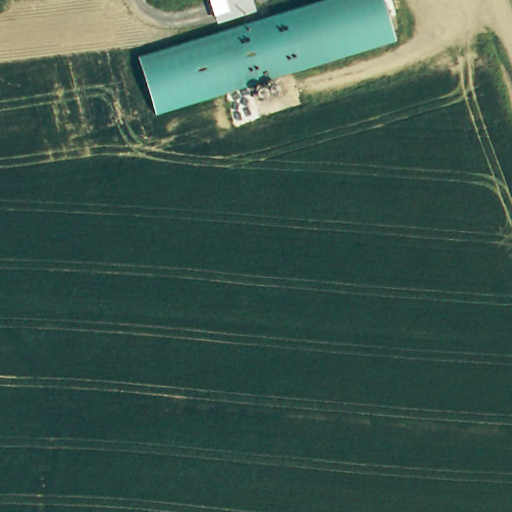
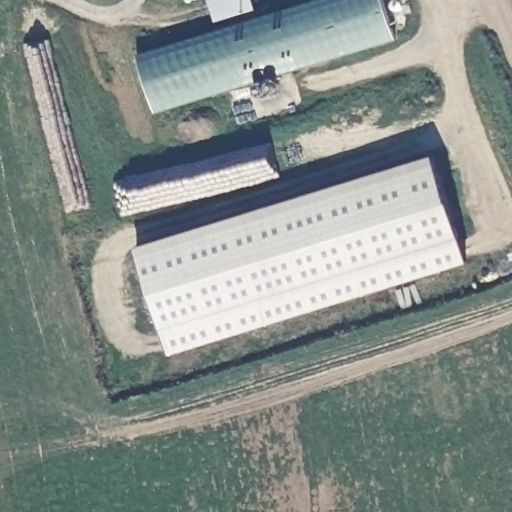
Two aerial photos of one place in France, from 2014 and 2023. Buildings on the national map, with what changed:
unchanged [(326,0),(383,0),(395,43),(152,113),(136,55),(326,0)]
new [(432,152),(464,251),(159,342),(132,246),(432,152)]

